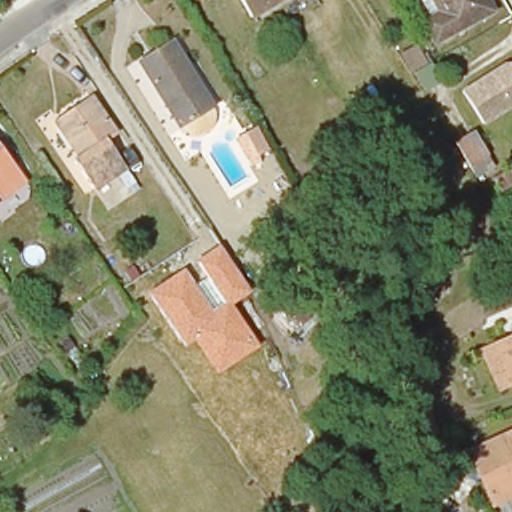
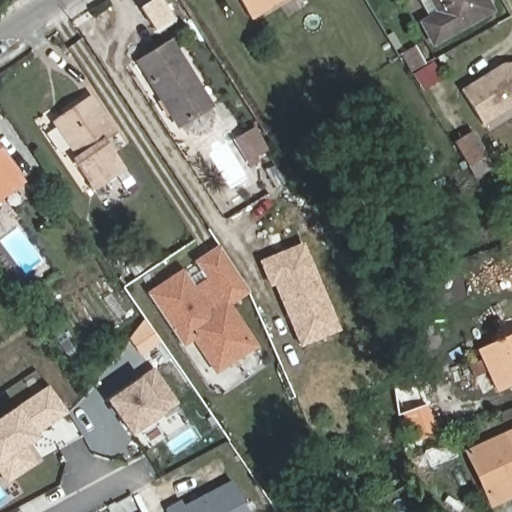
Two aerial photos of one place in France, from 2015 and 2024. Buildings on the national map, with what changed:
unchanged [(245,0),(280,0),(254,15),(245,0)]
unchanged [(436,50),(417,20),(423,16),(413,0),(485,0),(494,14),(436,50)]
unchanged [(213,109),(179,133),(137,66),(172,44),(213,109)]
unchanged [(457,88),(496,63),(512,61),(512,104),(480,124),(457,88)]
unchanged [(116,131),(110,136),(130,166),(95,189),(74,160),(82,154),(54,115),(89,91),(116,131)]
unchanged [(489,158),(472,169),(458,147),(475,136),(489,158)]
unchanged [(0,183),(0,146),(18,168),(0,183)]
new [(512,179),(512,194),(496,204),(482,182),(505,168),(512,179)]
unchanged [(2,204),(0,206),(0,202),(2,204)]
new [(300,347),(274,286),(271,287),(259,261),(303,242),(341,330),(300,347)]
unchanged [(250,291),(233,302),(259,347),(218,373),(194,339),(184,347),(149,292),(182,267),(195,285),(207,277),(195,261),(219,244),(250,291)]
new [(106,289),(122,309),(87,333),(72,313),(106,289)]
new [(142,355),(128,336),(143,318),(161,342),(142,355)]
unchanged [(483,352),(512,339),(512,383),(500,388),(483,352)]
new [(178,403),(131,436),(107,401),(112,395),(155,369),(178,403)]
new [(49,385),(68,413),(27,446),(38,462),(6,483),(0,474),(0,418),(49,385)]
unchanged [(415,445),(401,412),(424,403),(438,435),(415,445)]
unchanged [(465,451),(512,431),(512,466),(479,481),(465,451)]
new [(187,498),(189,502),(231,479),(249,512),(168,512),(166,509),(187,498)]

